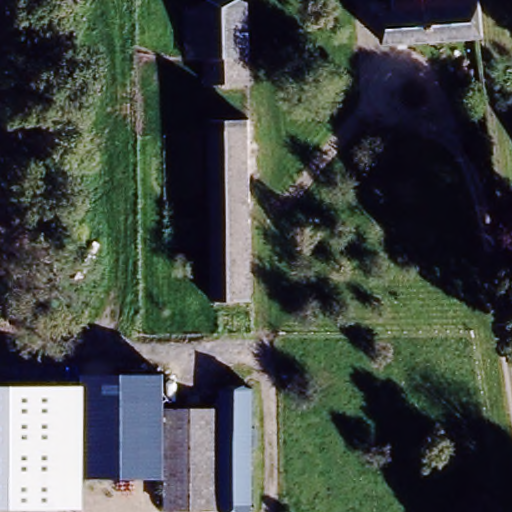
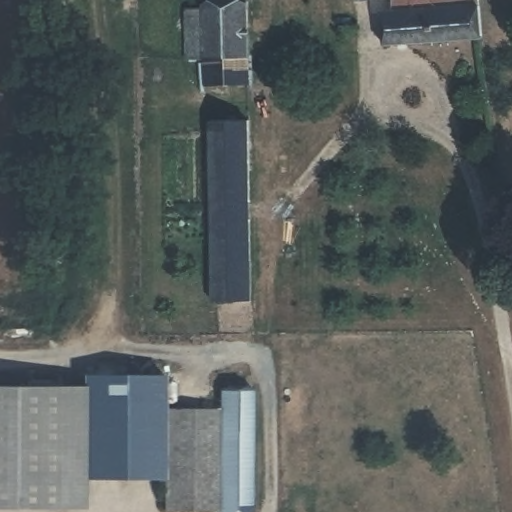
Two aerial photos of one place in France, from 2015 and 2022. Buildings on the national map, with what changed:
unchanged [(352,0),(363,0),(352,1),(352,0)]
unchanged [(395,12),(394,0),(476,0),(480,39),(379,50),(378,13),(395,12)]
unchanged [(254,75),(214,74),(214,50),(197,50),(198,1),(214,1),(214,2),(254,2),(254,75)]
unchanged [(211,112),(251,111),(255,311),(214,313),(211,112)]
unchanged [(81,481),(79,379),(160,377),(162,479),(81,481)]
unchanged [(81,481),(81,506),(0,506),(0,385),(79,385),(81,481)]
unchanged [(162,414),(222,412),(222,401),(250,401),(249,512),(164,512),(162,414)]

